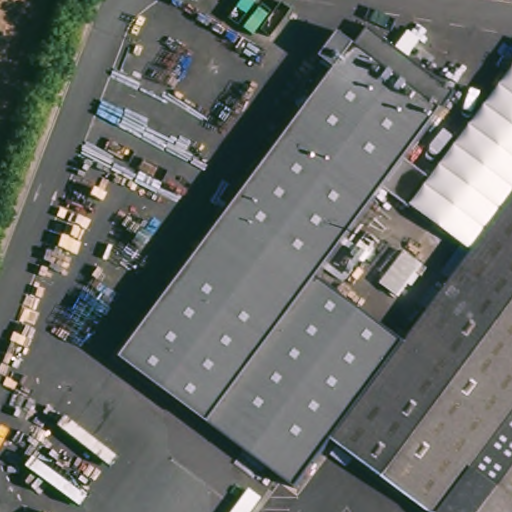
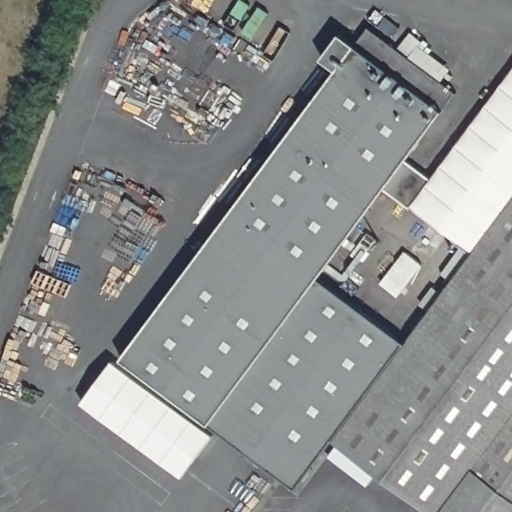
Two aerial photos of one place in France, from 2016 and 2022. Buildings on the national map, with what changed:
unchanged [(300,418),(308,423),(323,434),(333,442),(299,490),(209,421),(206,425),(122,358),(333,74),(319,62),(340,33),(354,44),(366,29),(455,92),(408,159),(428,176),(409,203),(386,186),(319,277),(358,309),(286,408),(300,418)]
unchanged [(512,62),(512,204),(475,254),(409,203),(428,176),(512,62)]
unchanged [(371,471),(333,442),(409,338),(475,254),(512,204),(512,399),(425,512),(371,471)]
unchanged [(425,273),(404,302),(387,291),(410,261),(425,273)]
unchanged [(358,309),(364,301),(409,338),(333,442),(308,423),(286,408),(358,309)]
new [(81,403),(112,361),(214,435),(182,478),(81,403)]
unchanged [(425,512),(512,399),(512,512),(426,512),(425,512)]

